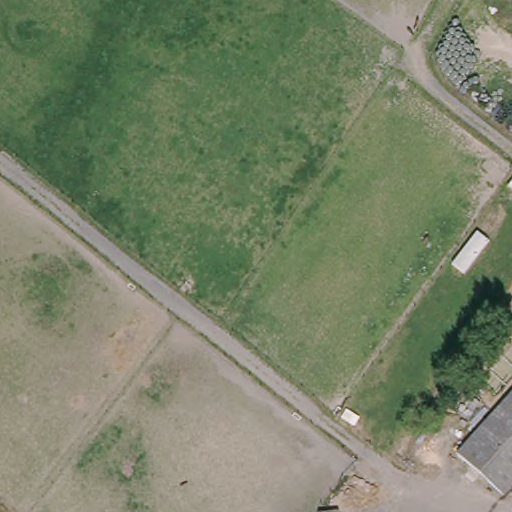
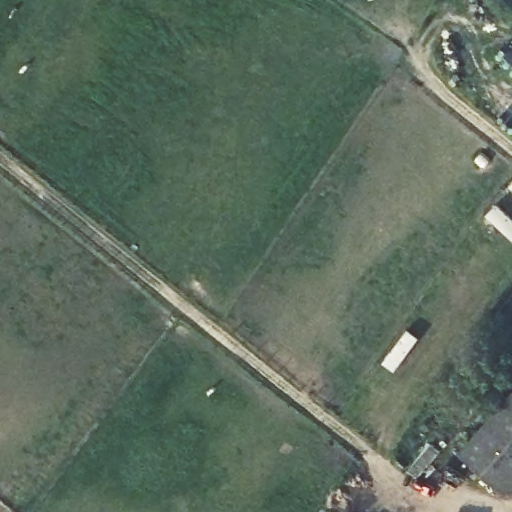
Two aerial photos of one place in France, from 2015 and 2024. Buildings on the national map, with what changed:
unchanged [(455,443),(512,379),(512,467),(497,484),(455,443)]

